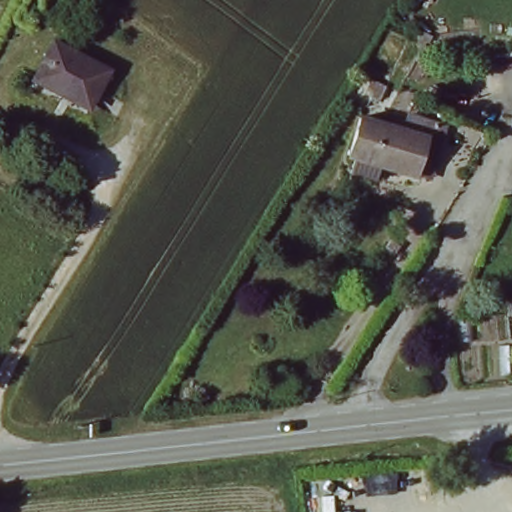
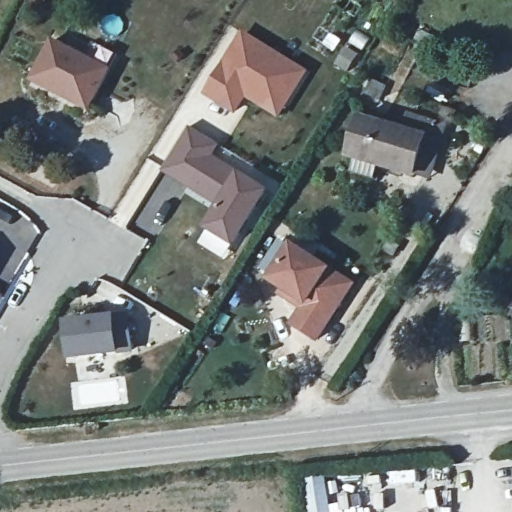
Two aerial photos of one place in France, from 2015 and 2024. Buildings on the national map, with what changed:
new [(309,69),(279,117),(246,97),(236,113),(202,93),(241,28),(309,69)]
unchanged [(112,70),(91,112),(35,87),(55,45),(112,70)]
unchanged [(411,169),(379,160),(375,176),(348,171),(353,153),(346,151),(359,112),(402,126),(406,110),(442,119),(438,136),(428,173),(411,169)]
new [(219,142),(213,152),(269,185),(233,242),(202,224),(214,202),(161,169),(188,124),(219,142)]
new [(291,244),(356,283),(318,343),(290,324),(300,308),(278,294),(281,289),(268,280),(291,244)]
new [(5,295),(0,304),(0,292),(5,295)]
new [(114,310),(117,349),(65,354),(61,315),(114,310)]

